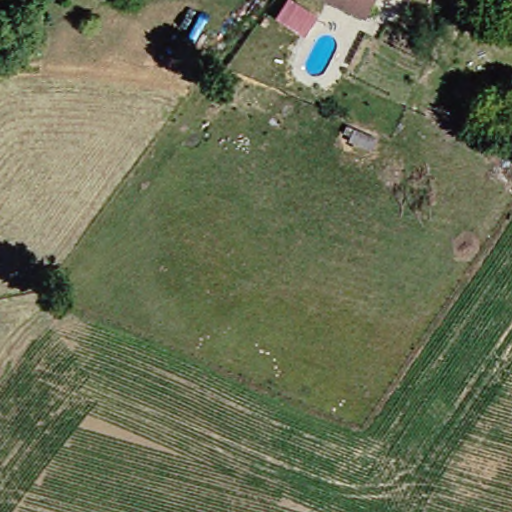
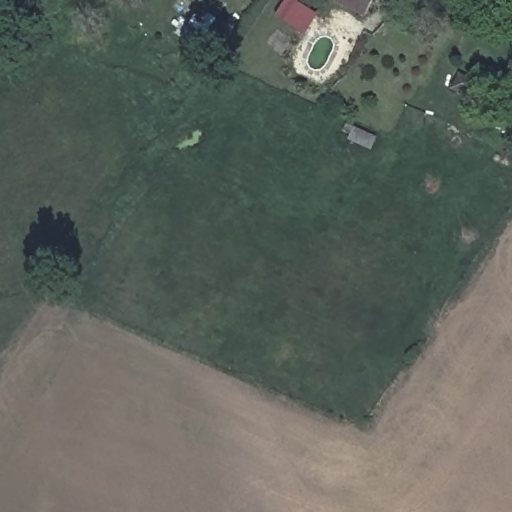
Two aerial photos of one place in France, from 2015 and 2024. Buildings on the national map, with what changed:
unchanged [(333,0),(379,0),(371,17),(333,0)]

